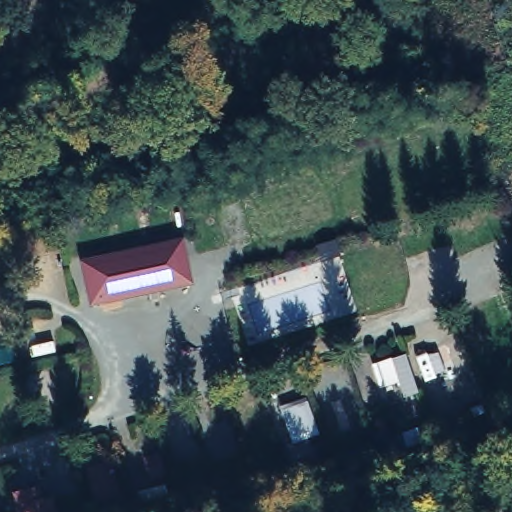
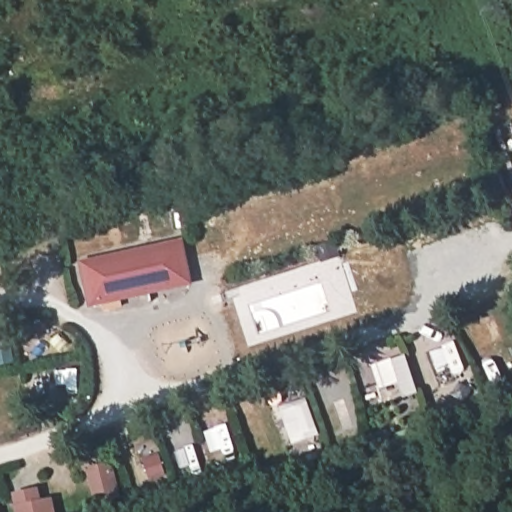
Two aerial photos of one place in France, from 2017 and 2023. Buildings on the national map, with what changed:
unchanged [(195,286),(91,308),(80,261),(185,239),(195,286)]

